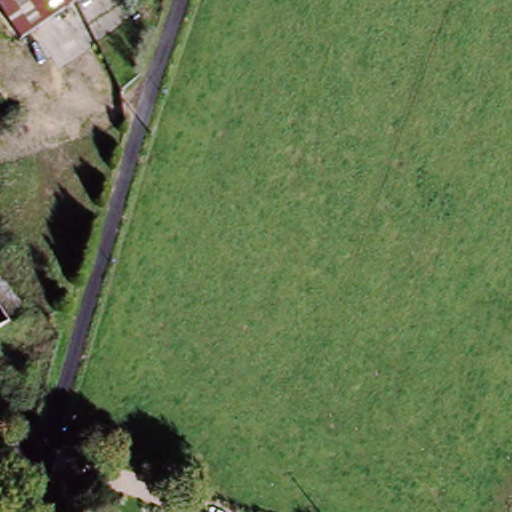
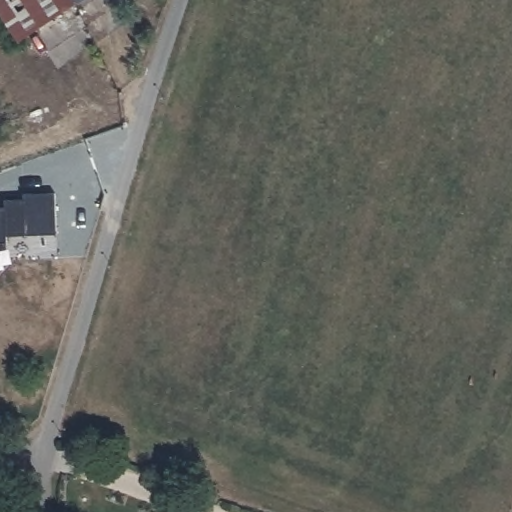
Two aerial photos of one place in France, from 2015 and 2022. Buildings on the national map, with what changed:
unchanged [(75,7),(15,42),(0,17),(0,0),(88,0),(75,7)]
new [(6,206),(5,199),(24,199),(24,193),(54,191),(55,233),(7,234),(7,243),(0,243),(0,206),(6,206)]
unchanged [(0,424),(0,407),(8,419),(0,424)]

